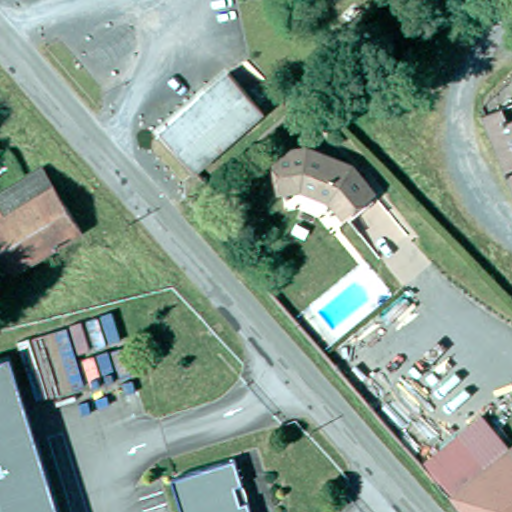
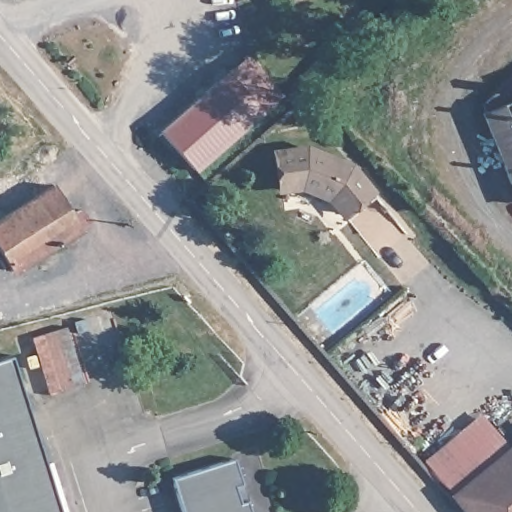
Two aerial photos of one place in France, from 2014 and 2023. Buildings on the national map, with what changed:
unchanged [(267,114),(198,174),(165,135),(234,74),(267,114)]
unchanged [(510,185),(503,165),(505,165),(498,145),(495,146),(490,129),(493,127),(488,111),(493,108),(490,97),(512,78),(512,185),(510,185)]
unchanged [(348,219),(341,211),(328,197),(300,186),(280,189),(275,147),(308,142),(352,165),(371,187),(377,195),(348,219)]
unchanged [(63,189),(0,228),(0,204),(52,171),(63,189)]
unchanged [(22,275),(19,270),(11,274),(6,267),(13,262),(0,240),(0,228),(63,189),(91,233),(22,275)]
unchanged [(0,360),(13,356),(64,512),(0,512),(0,360)]
unchanged [(420,461),(479,410),(512,445),(512,452),(453,500),(420,461)]
unchanged [(453,500),(512,452),(512,512),(465,512),(453,500)]
unchanged [(178,480),(241,458),(250,485),(244,486),(249,503),(255,501),(259,512),(188,512),(178,480)]

